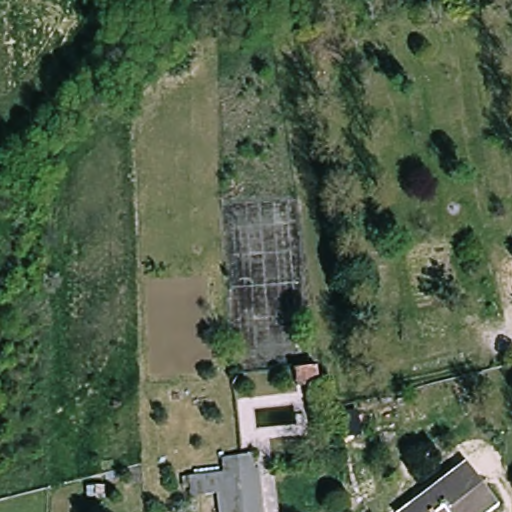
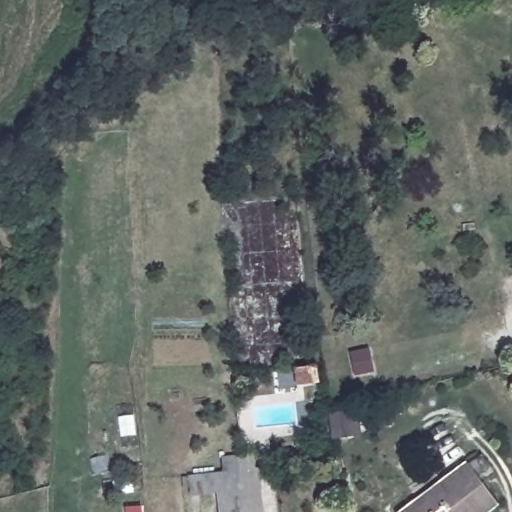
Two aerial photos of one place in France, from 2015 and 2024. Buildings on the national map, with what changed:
unchanged [(298,385),(295,368),(315,365),(318,382),(298,385)]
unchanged [(505,506),(497,512),(406,512),(471,462),(505,506)]
unchanged [(260,481),(265,480),(270,512),(250,512),(248,500),(245,469),(258,467),(260,481)]
unchanged [(248,500),(250,512),(226,512),(224,505),(213,507),(208,474),(245,469),(248,500)]

